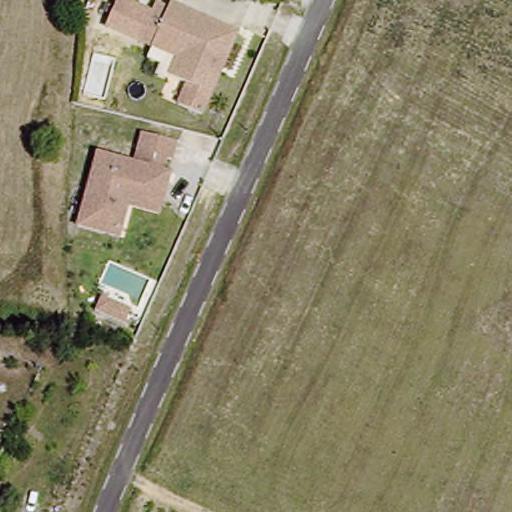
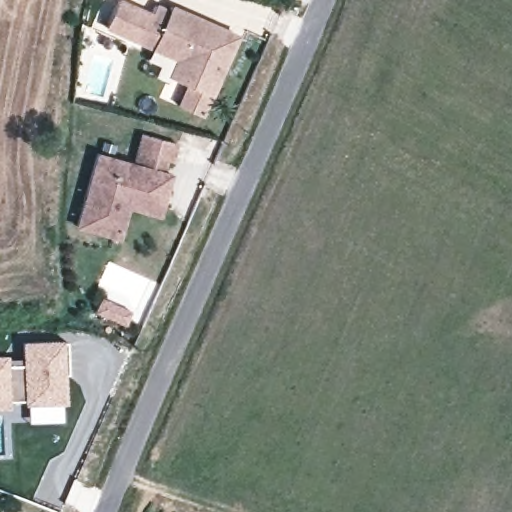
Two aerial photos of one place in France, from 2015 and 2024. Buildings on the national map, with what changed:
unchanged [(185,105),(194,84),(177,76),(184,57),(114,25),(126,0),(133,0),(159,13),(164,4),(177,10),(180,5),(245,36),(218,94),(208,115),(185,105)]
unchanged [(125,203),(115,235),(109,234),(73,223),(95,149),(131,160),(141,131),(173,141),(169,158),(164,157),(161,169),(168,171),(165,180),(158,202),(155,213),(125,203)]
unchanged [(102,300),(134,315),(127,330),(95,315),(102,300)]
new [(8,364),(23,363),(21,345),(62,342),(66,406),(53,407),(54,423),(0,426),(0,358),(8,358),(8,364)]

